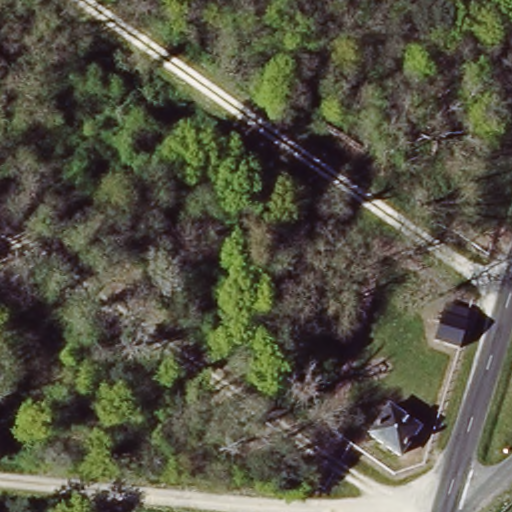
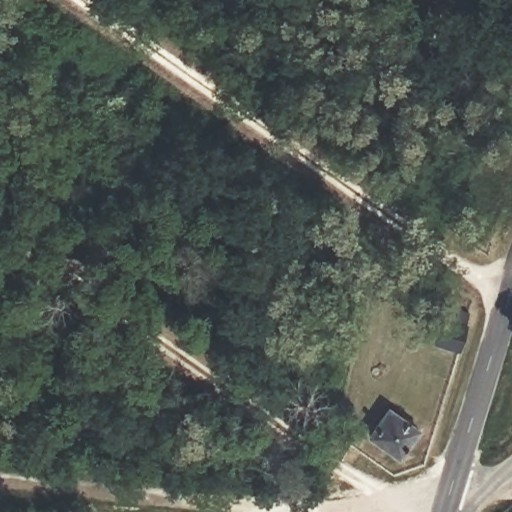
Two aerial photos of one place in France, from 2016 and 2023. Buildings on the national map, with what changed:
unchanged [(442,314),(472,324),(460,360),(430,350),(442,314)]
unchanged [(389,407),(420,427),(400,458),(368,438),(389,407)]

